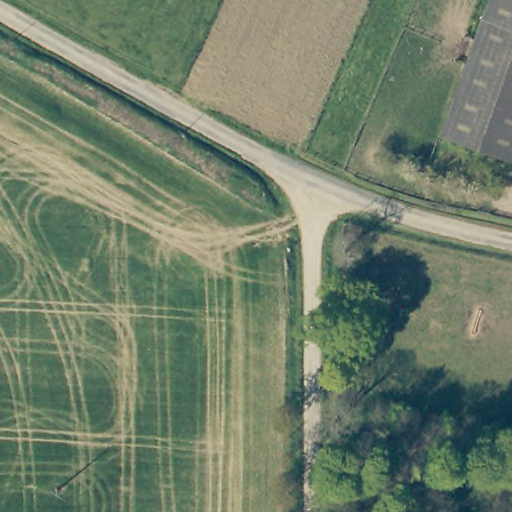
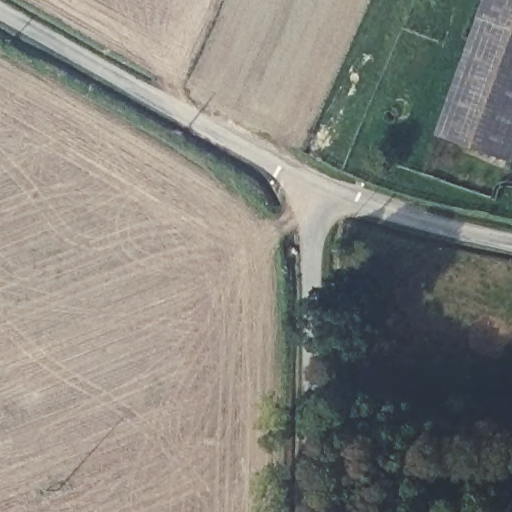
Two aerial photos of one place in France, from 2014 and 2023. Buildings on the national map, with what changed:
unchanged [(443,132),(487,0),(512,0),(512,155),(443,132)]

